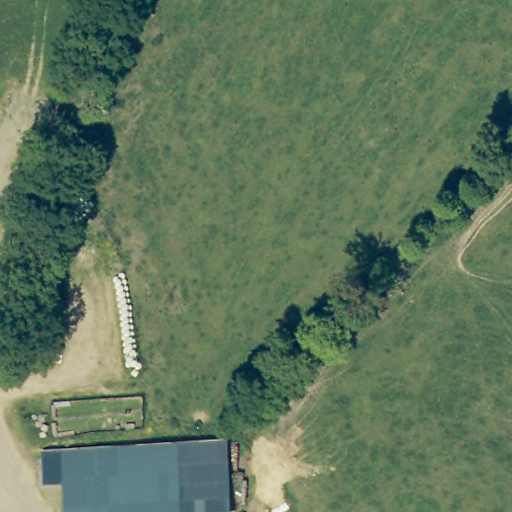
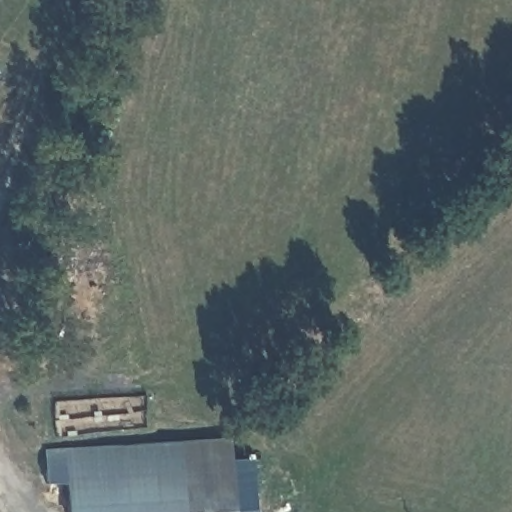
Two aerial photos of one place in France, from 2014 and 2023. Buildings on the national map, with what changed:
unchanged [(231,496),(232,507),(232,512),(66,512),(63,471),(62,452),(228,442),(231,496)]

